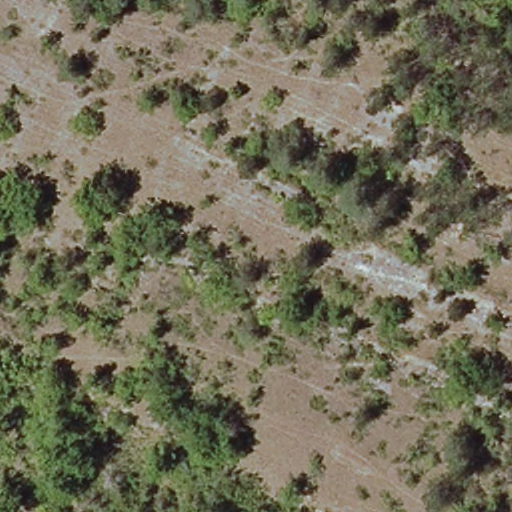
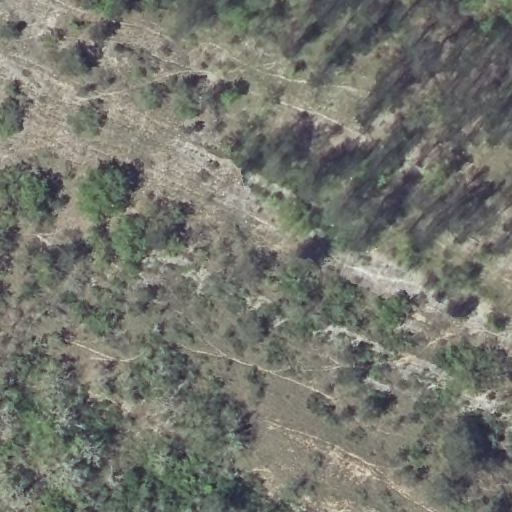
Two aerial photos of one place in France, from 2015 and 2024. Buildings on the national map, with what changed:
unchanged [(115,417),(108,427),(93,417),(100,407),(115,417)]

